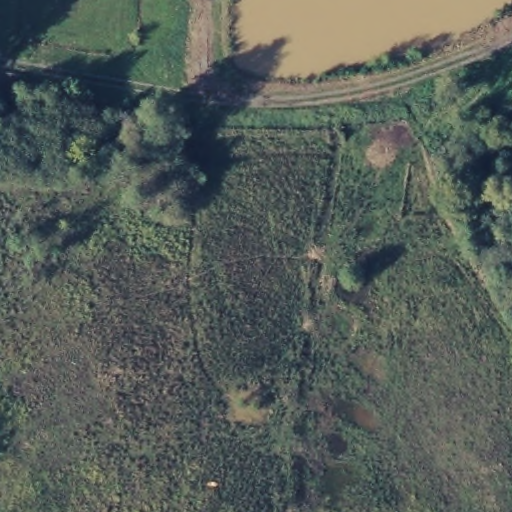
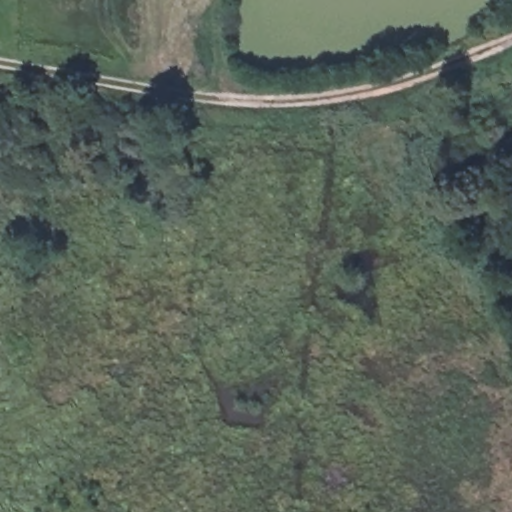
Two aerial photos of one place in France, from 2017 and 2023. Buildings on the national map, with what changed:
[]

